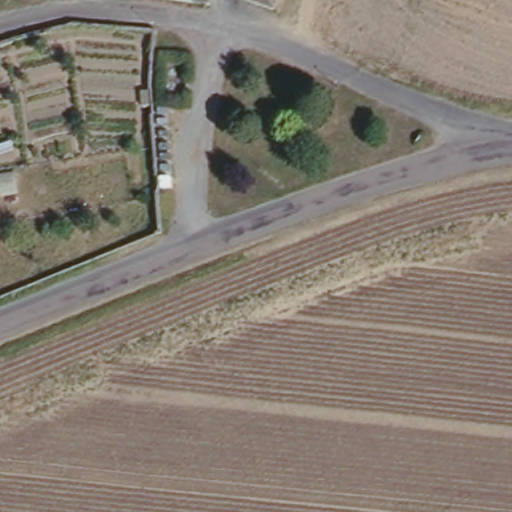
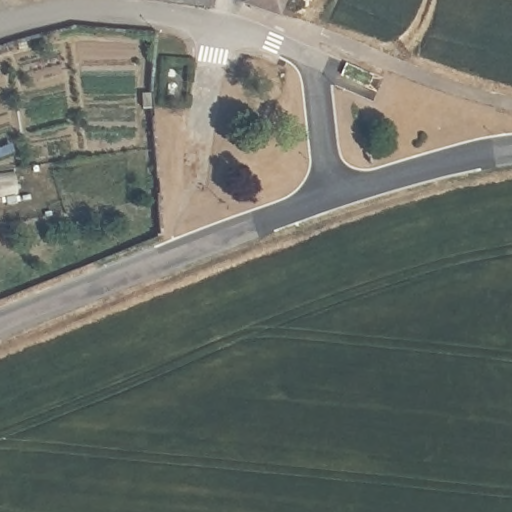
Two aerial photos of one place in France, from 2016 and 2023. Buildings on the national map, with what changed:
unchanged [(165,0),(209,0),(208,6),(165,0)]
unchanged [(247,0),(275,0),(272,10),(247,0)]

